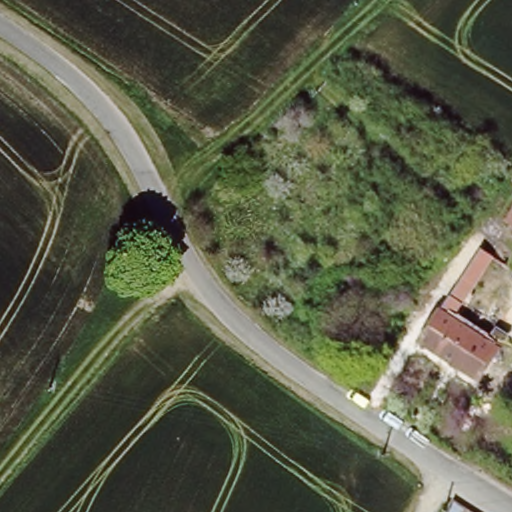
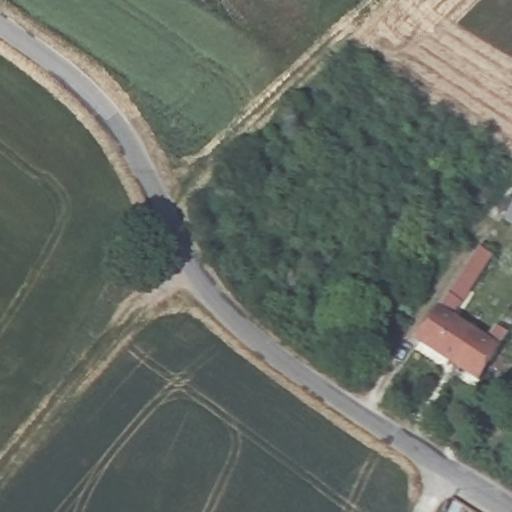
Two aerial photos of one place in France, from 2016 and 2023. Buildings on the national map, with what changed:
unchanged [(512,188),(512,231),(492,218),(512,188)]
unchanged [(491,253),(450,315),(482,337),(512,293),(512,320),(476,374),(417,334),(477,244),(491,253)]

